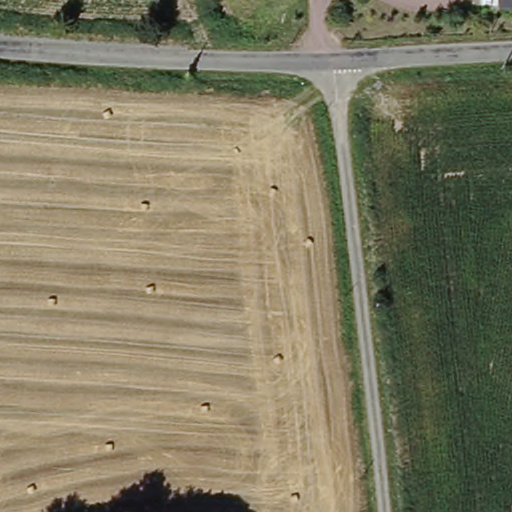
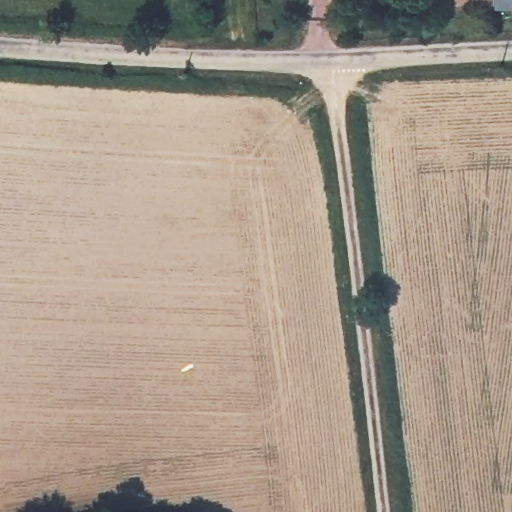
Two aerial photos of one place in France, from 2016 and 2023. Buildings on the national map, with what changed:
[]

